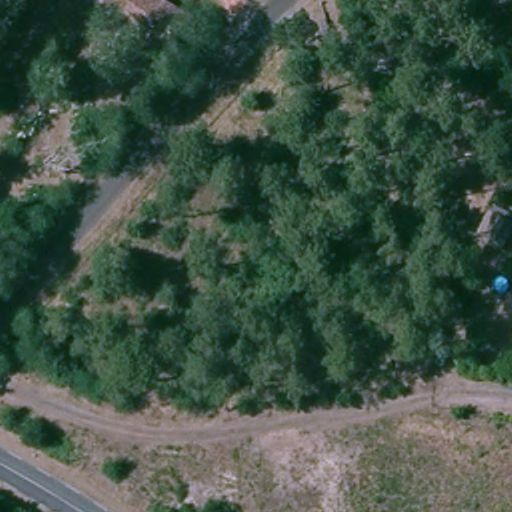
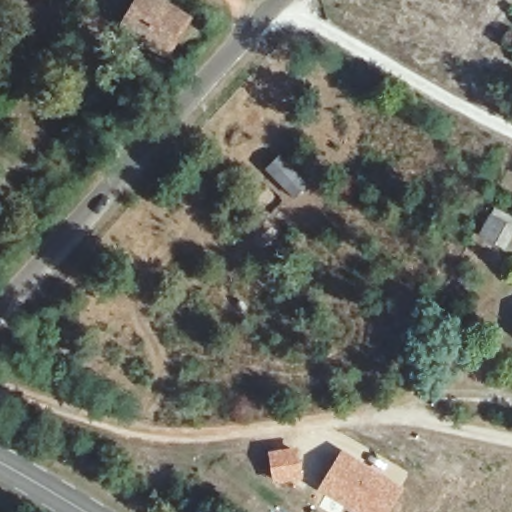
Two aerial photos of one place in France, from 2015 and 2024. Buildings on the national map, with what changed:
unchanged [(140,0),(152,0),(185,20),(166,55),(123,27),(140,0)]
new [(404,487),(389,512),(352,512),(315,490),(342,451),(404,487)]

